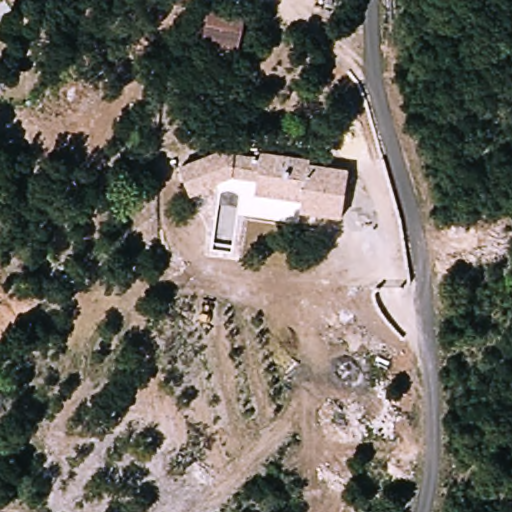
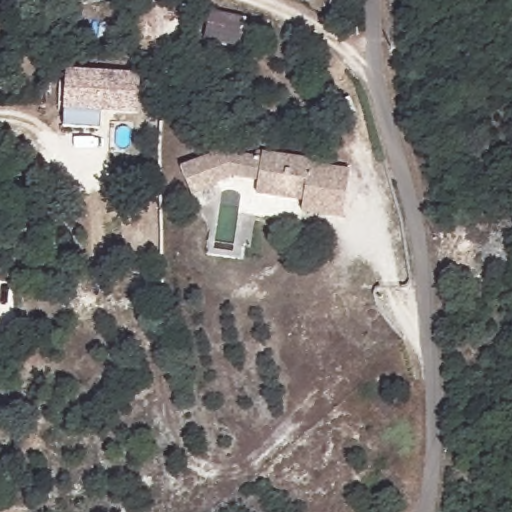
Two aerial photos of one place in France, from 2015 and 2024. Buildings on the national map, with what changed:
unchanged [(205,45),(213,11),(251,16),(239,54),(205,45)]
new [(140,72),(137,114),(64,110),(68,69),(140,72)]
unchanged [(301,207),(303,196),(256,189),(257,178),(229,174),(214,179),(215,181),(190,190),(181,165),(219,151),(261,156),(261,151),(308,157),(308,162),(347,168),(340,213),(301,207)]

